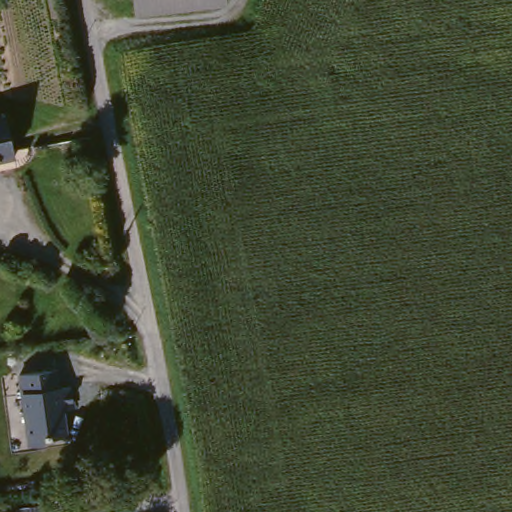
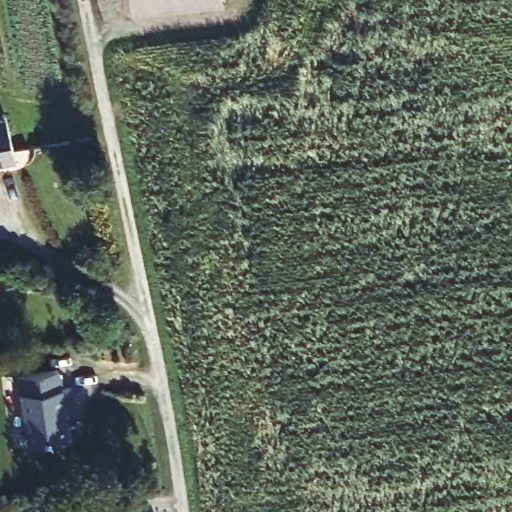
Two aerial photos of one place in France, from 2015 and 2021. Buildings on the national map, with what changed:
unchanged [(127,0),(223,0),(224,7),(128,16),(127,0)]
unchanged [(0,117),(9,159),(0,161),(0,117)]
unchanged [(68,389),(71,411),(60,412),(63,438),(44,440),(40,446),(26,447),(17,377),(55,372),(57,391),(68,389)]
unchanged [(18,508),(30,506),(31,512),(19,512),(18,508)]

